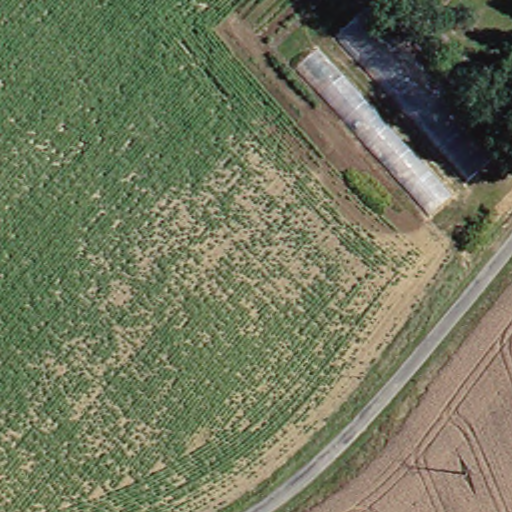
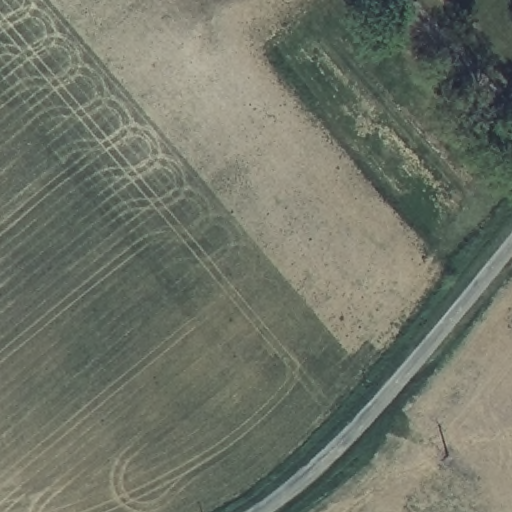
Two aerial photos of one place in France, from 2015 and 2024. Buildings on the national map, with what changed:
unchanged [(311,16),(332,0),(358,0),(493,150),(458,180),(311,16)]
demolished [(420,214),(277,47),(295,28),(442,197),(420,214)]

